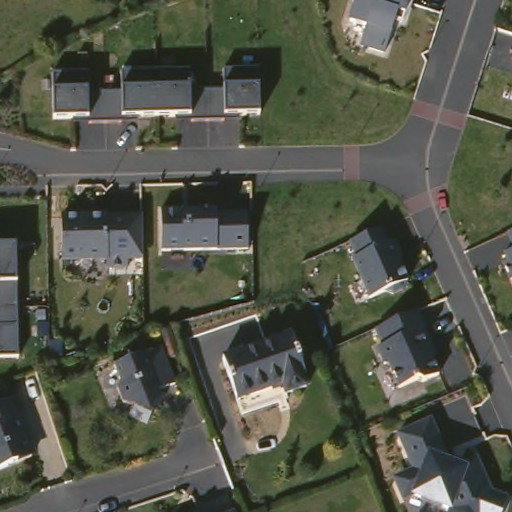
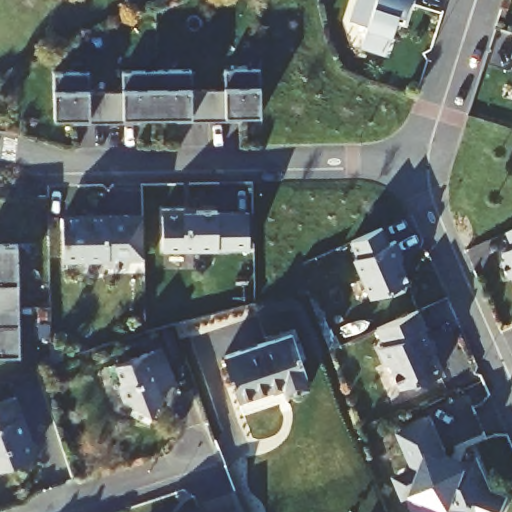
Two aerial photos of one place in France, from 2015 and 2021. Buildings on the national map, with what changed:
unchanged [(348,17),(355,0),(411,0),(404,24),(395,23),(384,54),(362,45),(368,26),(348,17)]
unchanged [(512,52),(512,58),(510,58),(512,52)]
unchanged [(56,91),(56,76),(86,76),(86,91),(121,93),(121,74),(189,74),(188,91),(224,91),(223,73),(258,73),(261,116),(225,118),(189,120),(125,119),(86,121),(56,121),(56,91)]
unchanged [(162,210),(250,212),(249,254),(163,250),(162,210)]
unchanged [(140,213),(144,262),(62,262),(61,214),(140,213)]
unchanged [(512,231),(512,247),(506,233),(512,231)]
unchanged [(383,232),(408,290),(372,304),(347,242),(383,232)]
unchanged [(18,247),(20,359),(0,359),(0,246),(18,247)]
unchanged [(505,254),(512,252),(512,269),(511,269),(505,254)]
unchanged [(375,334),(420,319),(441,376),(399,391),(375,334)]
unchanged [(301,330),(315,372),(313,373),(315,382),(296,389),(298,393),(252,409),(233,353),(301,330)]
unchanged [(170,342),(184,379),(168,386),(169,389),(155,419),(137,411),(141,402),(132,398),(126,383),(130,376),(124,359),(170,342)]
unchanged [(28,399),(40,430),(35,431),(44,457),(10,471),(0,466),(0,445),(0,410),(28,399)]
unchanged [(392,473),(410,467),(395,432),(429,421),(444,461),(473,455),(488,491),(506,497),(501,512),(442,512),(401,501),(392,473)]
unchanged [(246,512),(230,512),(243,507),(246,512)]

